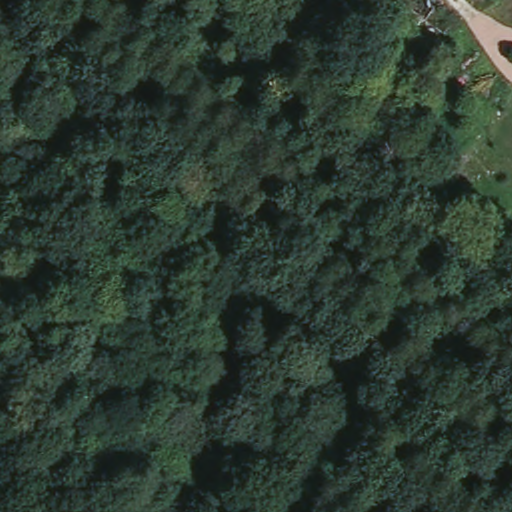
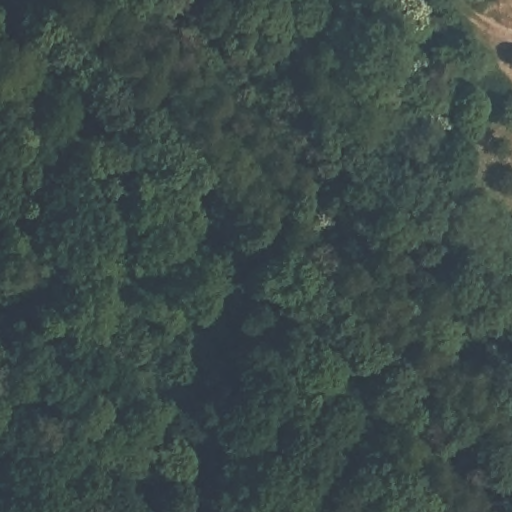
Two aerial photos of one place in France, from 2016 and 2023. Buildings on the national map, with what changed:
unchanged [(443,34),(400,0),(432,0),(455,17),(443,34)]

